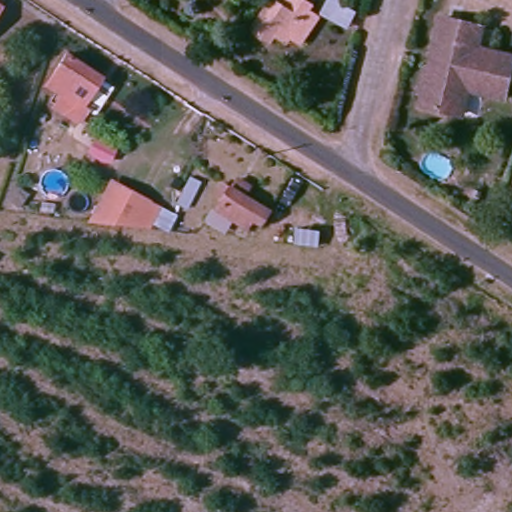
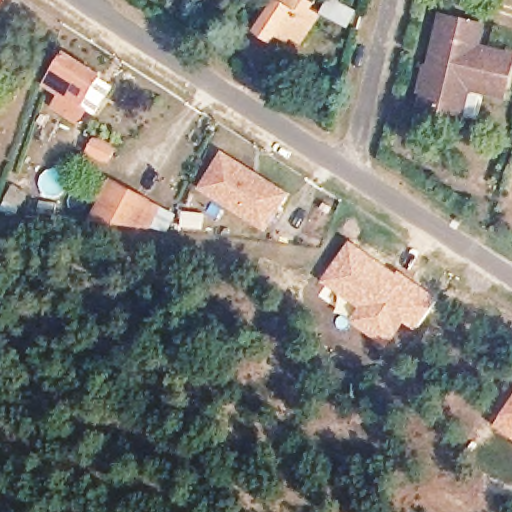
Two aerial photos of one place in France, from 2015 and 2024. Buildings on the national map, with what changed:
unchanged [(294,45),(286,39),(280,48),(263,36),(256,31),(277,0),(317,0),(323,4),(317,13),(326,19),(308,45),(299,39),(294,45)]
unchanged [(446,116),(419,109),(423,95),(419,94),(423,76),(433,69),(436,57),(433,47),(439,22),(467,29),(479,32),(473,56),(509,65),(500,99),(466,90),(464,98),(458,119),(446,116)]
unchanged [(100,78),(81,108),(87,112),(80,123),(55,105),(63,94),(46,83),(64,54),(100,78)]
new [(291,195),(267,234),(197,189),(222,151),(291,195)]
unchanged [(148,229),(132,228),(90,223),(116,182),(148,202),(160,209),(148,229)]
demolished [(263,226),(257,236),(215,213),(228,190),(270,213),(263,226)]
new [(348,240),(379,260),(410,278),(438,298),(414,330),(404,324),(386,348),(347,320),(356,309),(319,282),(348,240)]
new [(512,440),(493,426),(512,399),(512,440)]

